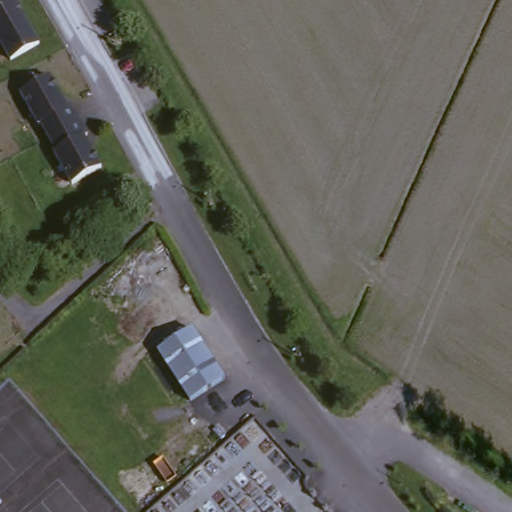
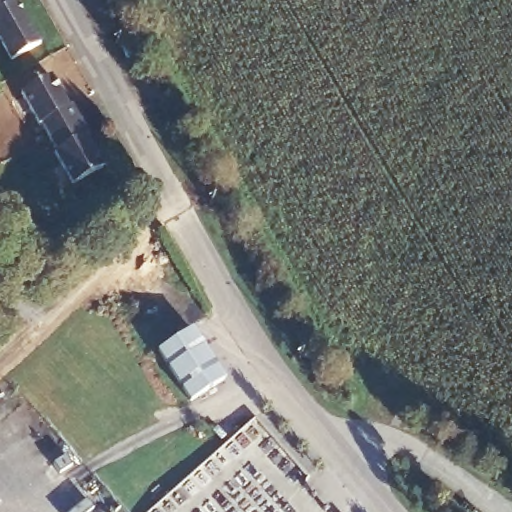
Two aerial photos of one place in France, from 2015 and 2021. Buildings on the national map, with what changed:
unchanged [(19,6),(43,46),(13,63),(0,40),(0,0),(12,0),(16,7),(19,6)]
unchanged [(86,137),(83,140),(101,170),(69,189),(52,155),(55,154),(48,140),(39,122),(35,124),(19,92),(50,78),(65,110),(71,107),(79,124),(86,137)]
unchanged [(193,401),(158,354),(172,343),(191,329),(226,377),(203,395),(193,401)]

